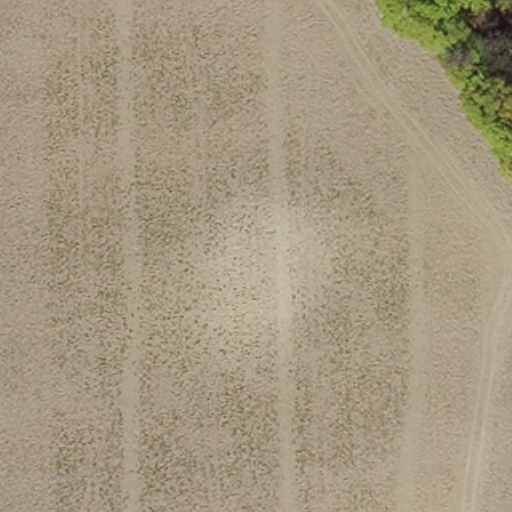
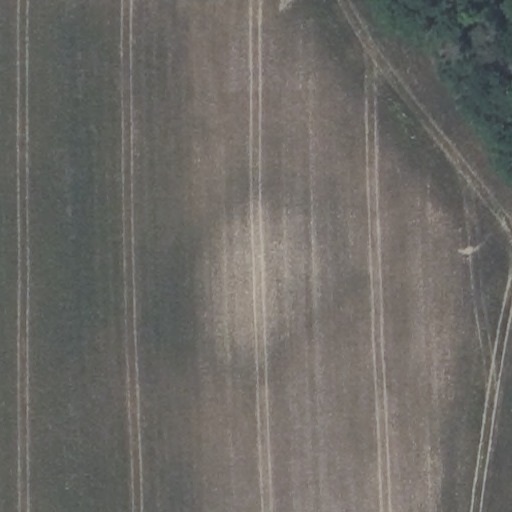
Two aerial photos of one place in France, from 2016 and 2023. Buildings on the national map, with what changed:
[]

